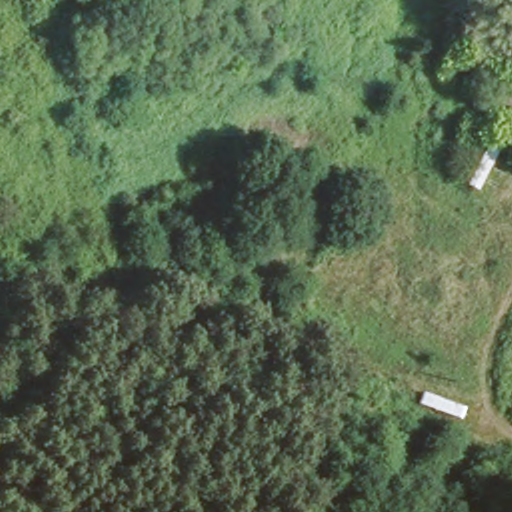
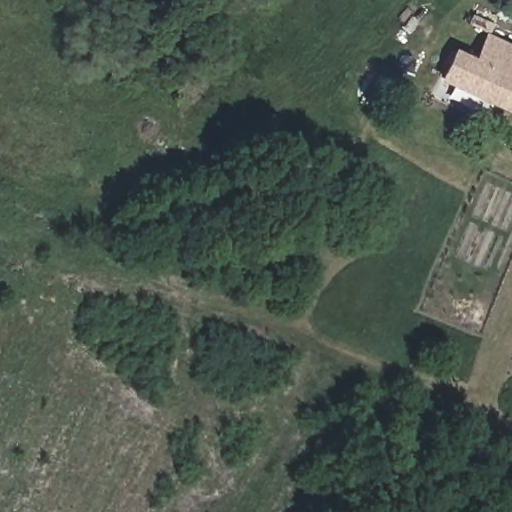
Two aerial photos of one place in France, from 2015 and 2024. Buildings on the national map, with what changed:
new [(512,47),(512,116),(432,80),(449,50),(468,56),(481,32),(512,47)]
demolished [(441,78),(457,45),(480,56),(464,85),(441,78)]
demolished [(493,101),(509,68),(512,69),(512,110),(493,101)]

